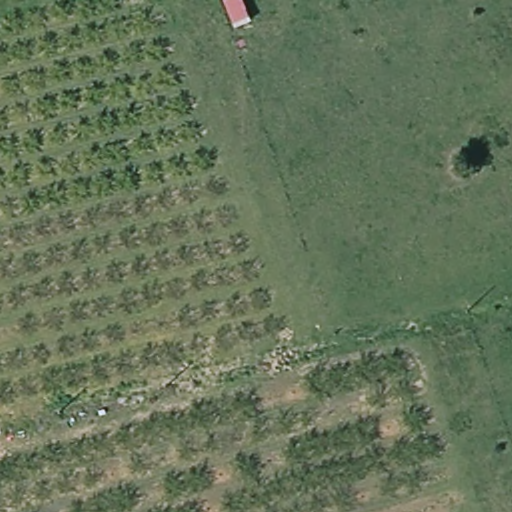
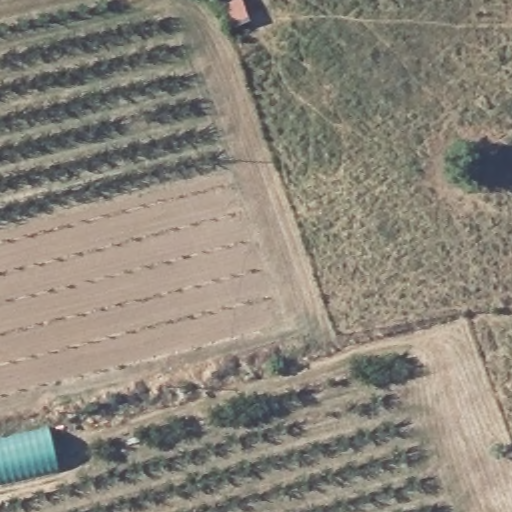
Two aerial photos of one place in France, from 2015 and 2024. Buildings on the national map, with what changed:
new [(0,483),(0,441),(47,430),(56,470),(0,483)]

